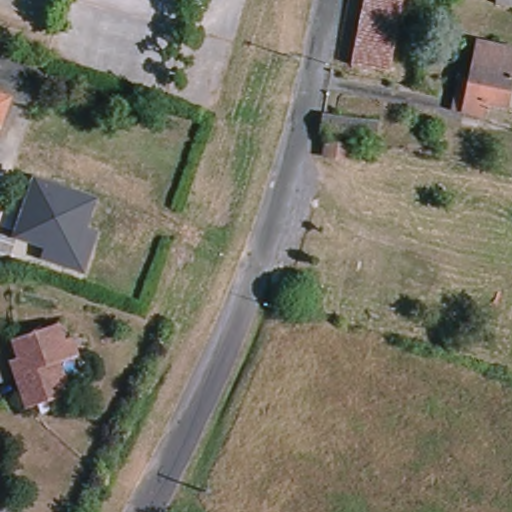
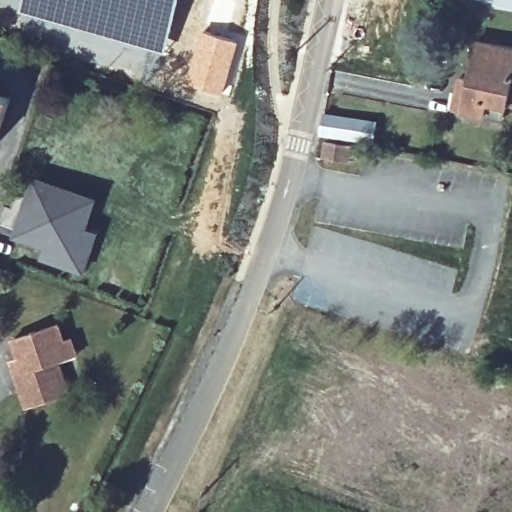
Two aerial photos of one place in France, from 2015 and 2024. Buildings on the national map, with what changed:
new [(181,0),(165,53),(20,11),(23,0),(181,0)]
unchanged [(367,0),(405,0),(390,76),(353,69),(367,0)]
unchanged [(512,0),(512,2),(497,0),(512,0)]
new [(203,29),(240,41),(223,94),(186,81),(203,29)]
unchanged [(482,119),(452,112),(460,79),(469,81),(477,43),(512,51),(512,74),(503,111),(501,123),(482,119)]
unchanged [(0,131),(0,93),(11,96),(0,131)]
unchanged [(325,113),(370,121),(365,141),(322,133),(325,113)]
unchanged [(326,141),(347,146),(345,159),(323,155),(326,141)]
unchanged [(89,229),(99,233),(85,272),(41,257),(44,246),(13,236),(33,175),(99,197),(89,229)]
unchanged [(24,357),(17,337),(59,322),(66,340),(75,337),(81,353),(73,357),(62,360),(72,392),(30,405),(19,373),(15,360),(24,357)]

